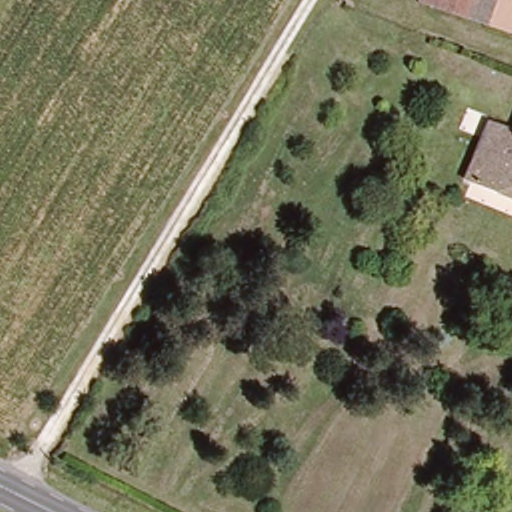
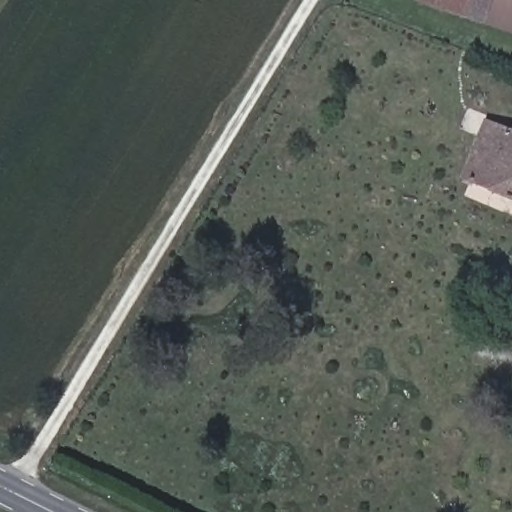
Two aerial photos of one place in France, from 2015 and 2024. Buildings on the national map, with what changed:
unchanged [(415,0),(512,0),(512,40),(412,6),(415,0)]
unchanged [(485,119),(512,128),(512,198),(461,178),(485,119)]

